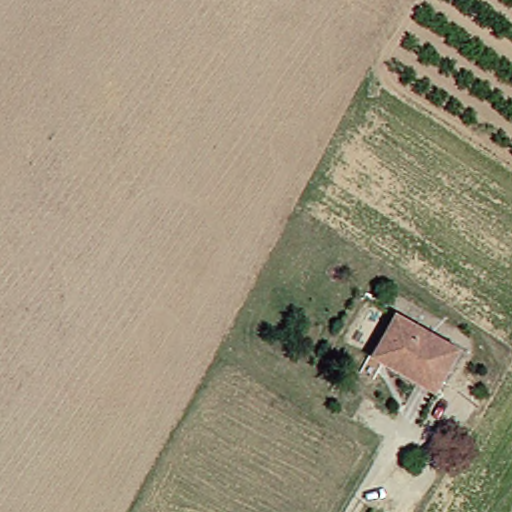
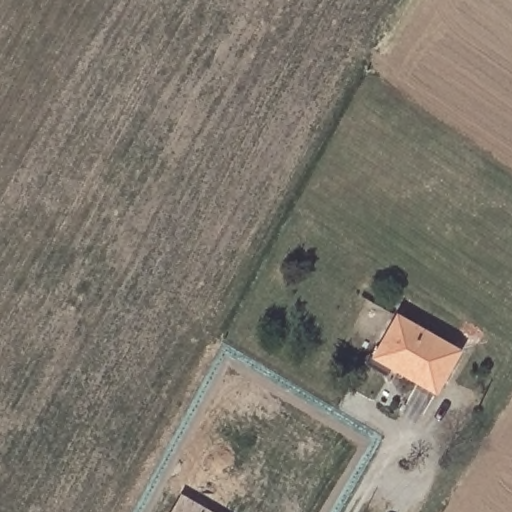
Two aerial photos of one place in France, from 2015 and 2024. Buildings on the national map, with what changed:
unchanged [(407,382),(387,370),(366,356),(372,347),(395,310),(453,347),(431,382),(424,392),(407,382)]
new [(218,512),(171,512),(182,491),(218,512)]

